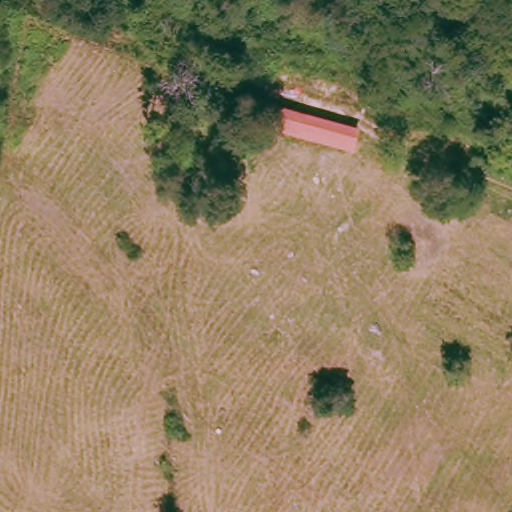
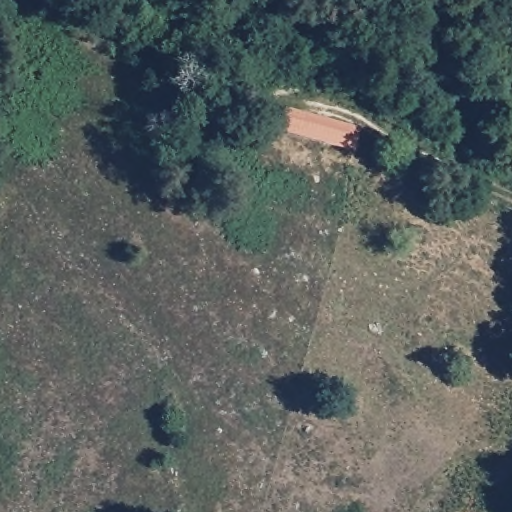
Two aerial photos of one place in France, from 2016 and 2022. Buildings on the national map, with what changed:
unchanged [(364,130),(356,155),(268,131),(276,105),(364,130)]

